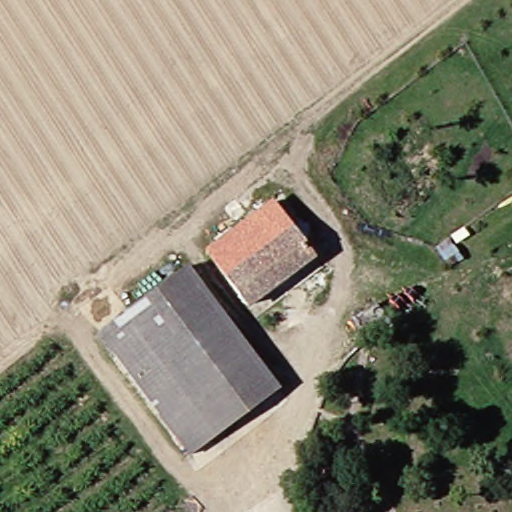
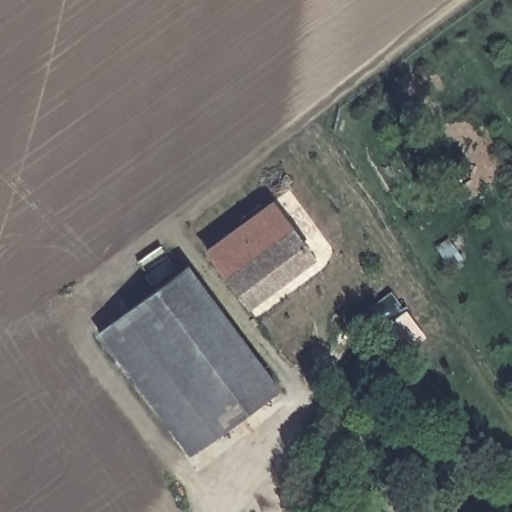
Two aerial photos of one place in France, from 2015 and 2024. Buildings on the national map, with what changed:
unchanged [(270,201),(310,257),(238,308),(198,252),(270,201)]
unchanged [(103,322),(166,277),(254,400),(191,445),(103,322)]

